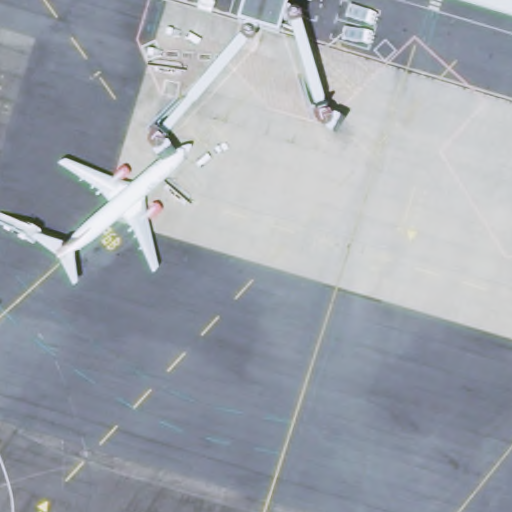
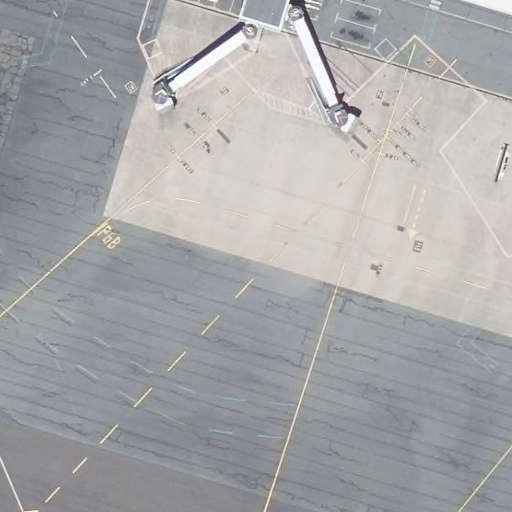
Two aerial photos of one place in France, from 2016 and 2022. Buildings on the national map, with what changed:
unchanged [(285,33),(237,23),(244,0),(293,0),(285,33)]
unchanged [(512,16),(456,0),(512,0),(512,16)]

